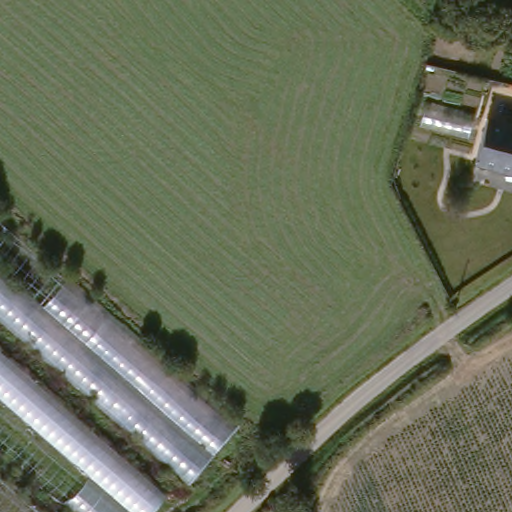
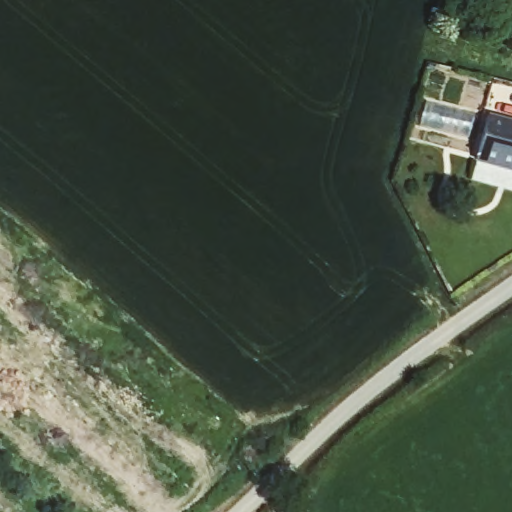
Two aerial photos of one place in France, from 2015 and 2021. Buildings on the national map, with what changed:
unchanged [(512,122),(512,166),(474,157),(484,116),(512,122)]
demolished [(191,477),(0,314),(0,214),(241,420),(191,477)]
demolished [(153,512),(77,512),(0,446),(0,346),(168,493),(153,512)]
demolished [(0,474),(44,512),(0,512),(0,474)]

